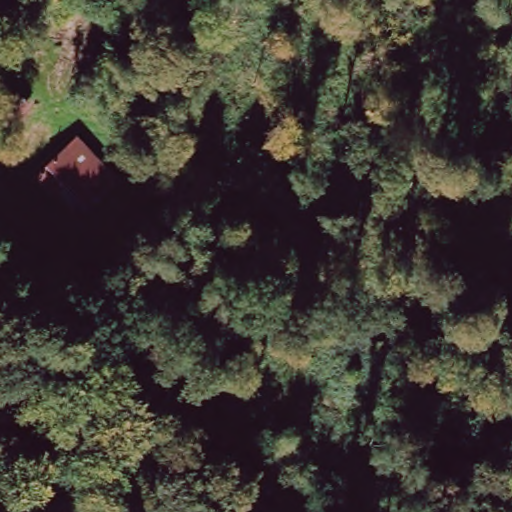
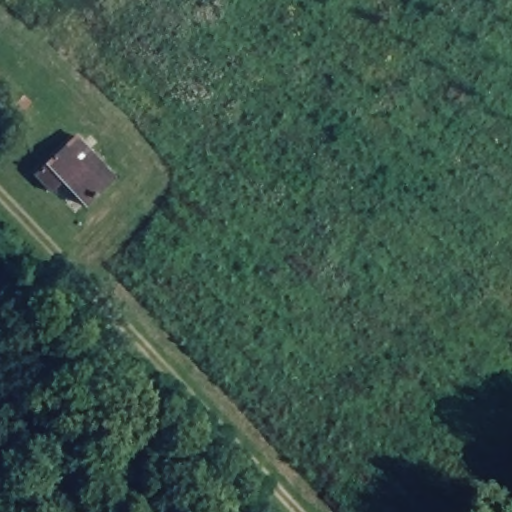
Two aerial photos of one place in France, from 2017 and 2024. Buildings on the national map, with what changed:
unchanged [(77,203),(60,184),(48,192),(30,169),(45,159),(77,133),(113,175),(77,203)]

